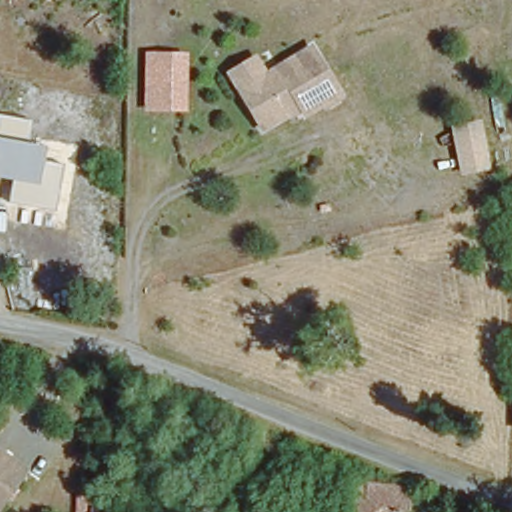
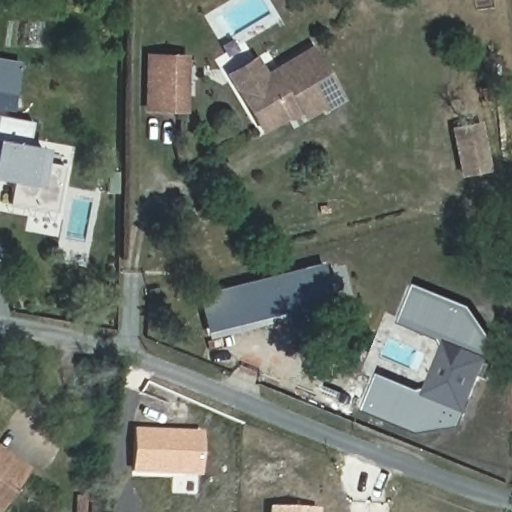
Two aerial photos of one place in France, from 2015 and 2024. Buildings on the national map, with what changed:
unchanged [(325,113),(323,109),(307,119),(303,115),(288,122),(284,120),(263,132),(226,73),(257,56),(267,71),(313,45),(346,99),(325,113)]
unchanged [(188,112),(145,111),(146,52),(189,53),(188,112)]
new [(13,110),(0,108),(0,58),(21,62),(13,110)]
unchanged [(48,146),(46,160),(65,164),(56,210),(8,202),(11,182),(0,180),(0,113),(34,120),(29,142),(48,146)]
unchanged [(492,170),(459,176),(450,125),(483,120),(492,170)]
new [(207,334),(195,296),(323,262),(332,297),(207,334)]
new [(416,435),(363,412),(378,376),(417,392),(428,391),(444,347),(440,341),(405,326),(418,287),(472,309),(495,345),(460,428),(416,435)]
new [(199,476),(131,473),(133,429),(202,432),(199,476)]
unchanged [(0,506),(0,454),(26,476),(0,506)]
demolished [(247,483),(246,512),(220,512),(222,478),(247,483)]
unchanged [(407,483),(405,512),(364,512),(366,478),(407,483)]
new [(318,509),(318,512),(269,512),(269,507),(318,509)]
unchanged [(364,512),(348,512),(348,510),(364,512)]

